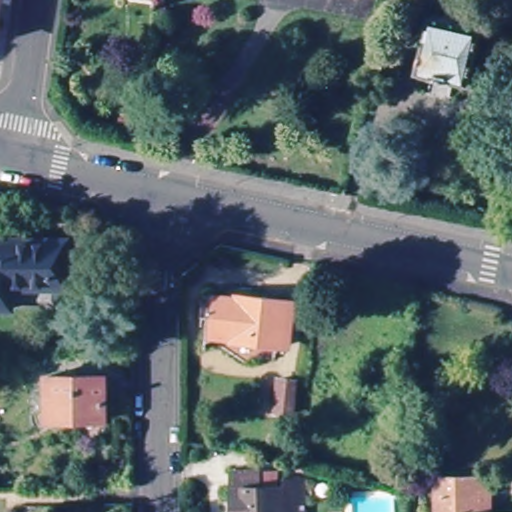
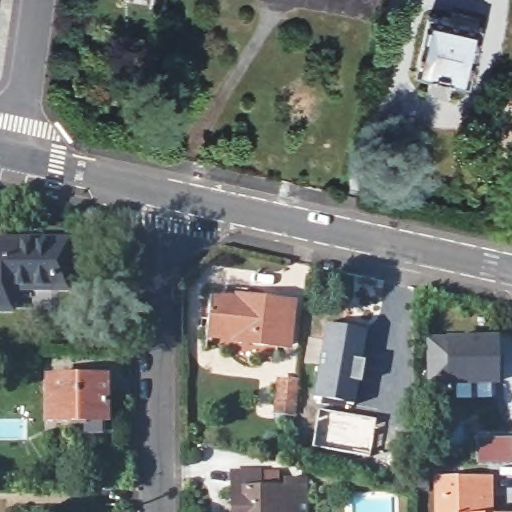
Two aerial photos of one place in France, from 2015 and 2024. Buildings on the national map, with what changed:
unchanged [(346,1),(341,0),(346,0),(346,1)]
unchanged [(477,33),(482,34),(467,93),(413,82),(428,23),(450,28),(455,11),(481,16),(477,33)]
unchanged [(70,282),(16,281),(17,304),(0,304),(0,235),(69,235),(70,282)]
unchanged [(290,346),(285,345),(252,342),(253,338),(205,333),(209,294),(241,298),(242,295),(291,300),(296,301),(290,346)]
new [(308,336),(321,338),(324,323),(367,330),(362,370),(354,404),(312,396),(317,364),(304,361),(308,336)]
new [(495,335),(495,379),(429,380),(428,336),(495,335)]
unchanged [(104,378),(105,420),(46,421),(46,377),(104,378)]
unchanged [(297,380),(294,411),(278,409),(281,378),(297,380)]
new [(318,409),(376,417),(369,457),(311,447),(318,409)]
new [(413,464),(426,464),(426,489),(413,489),(413,464)]
unchanged [(261,472),(280,472),(280,487),(287,487),(287,479),(308,478),(309,512),(231,512),(231,471),(261,472)]
unchanged [(442,497),(441,477),(492,475),(493,494),(494,512),(436,512),(436,497),(442,497)]

